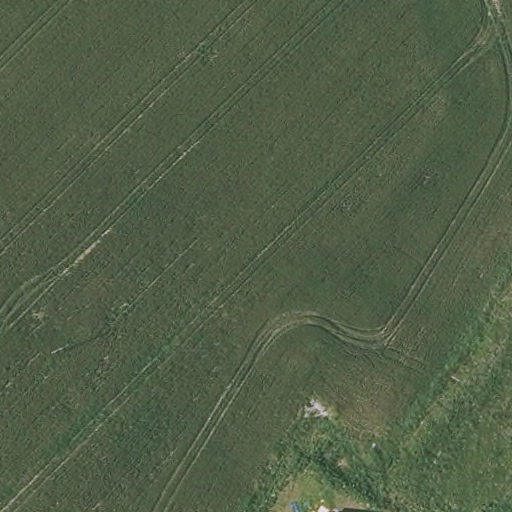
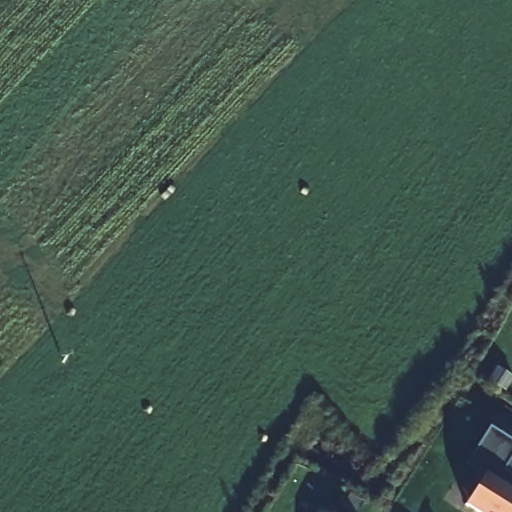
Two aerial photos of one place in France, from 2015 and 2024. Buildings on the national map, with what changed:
new [(500,367),(512,375),(512,382),(507,390),(491,379),(500,367)]
new [(475,512),(465,505),(483,477),(465,465),(490,427),(512,441),(512,512),(475,512)]

